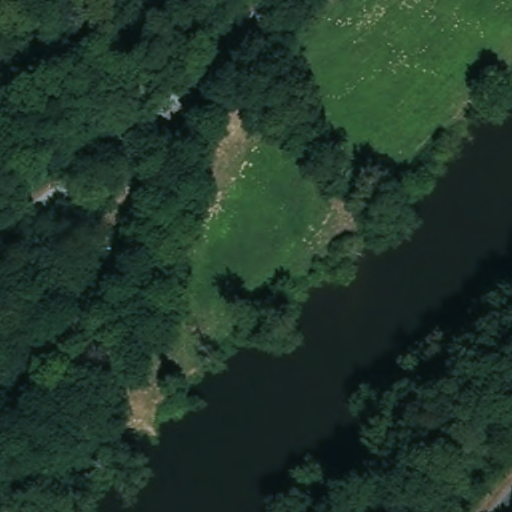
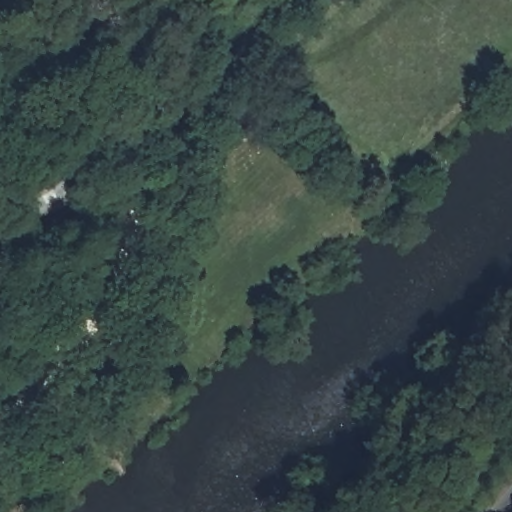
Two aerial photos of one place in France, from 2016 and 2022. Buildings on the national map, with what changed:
unchanged [(50,235),(63,252),(46,264),(33,247),(50,235)]

